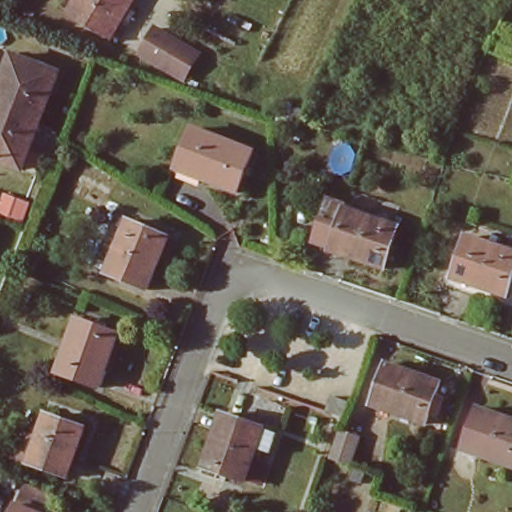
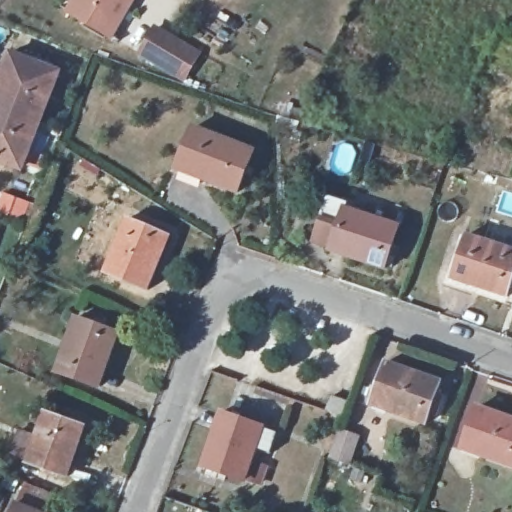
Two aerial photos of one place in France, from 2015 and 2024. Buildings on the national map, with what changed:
unchanged [(78,0),(133,0),(112,36),(71,12),(78,0)]
unchanged [(184,80),(155,62),(142,55),(157,29),(170,37),(200,55),(184,80)]
unchanged [(500,33),(512,38),(512,60),(490,51),(500,33)]
unchanged [(0,161),(0,86),(12,55),(60,73),(41,121),(23,170),(0,161)]
unchanged [(174,170),(190,129),(250,152),(234,194),(174,170)]
unchanged [(333,249),(346,209),(400,227),(385,269),(349,257),(350,255),(333,249)]
unchanged [(146,288),(108,273),(129,220),(170,237),(155,273),(153,272),(146,288)]
unchanged [(463,236),(512,252),(512,267),(502,296),(465,283),(466,281),(450,275),(463,236)]
unchanged [(58,372),(77,319),(119,334),(105,370),(103,370),(97,386),(58,372)]
unchanged [(369,403),(383,364),(436,383),(421,425),(385,411),(385,409),(369,403)]
unchanged [(327,409),(332,395),(349,400),(344,415),(327,409)]
unchanged [(478,407),(512,420),(512,466),(480,455),(480,453),(464,447),(478,407)]
unchanged [(38,436),(46,414),(85,427),(74,458),(72,457),(65,475),(12,456),(21,430),(38,436)]
unchanged [(209,431),(214,415),(268,433),(261,455),(246,450),(235,481),(193,467),(206,430),(209,431)]
unchanged [(330,458),(339,430),(362,437),(352,466),(330,458)]
unchanged [(21,490),(51,502),(47,512),(12,512),(21,490)]

